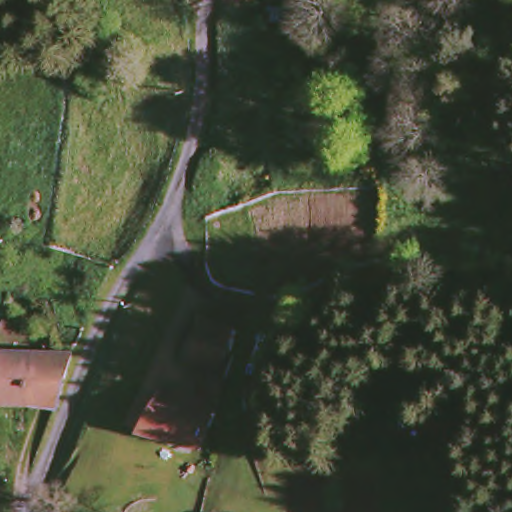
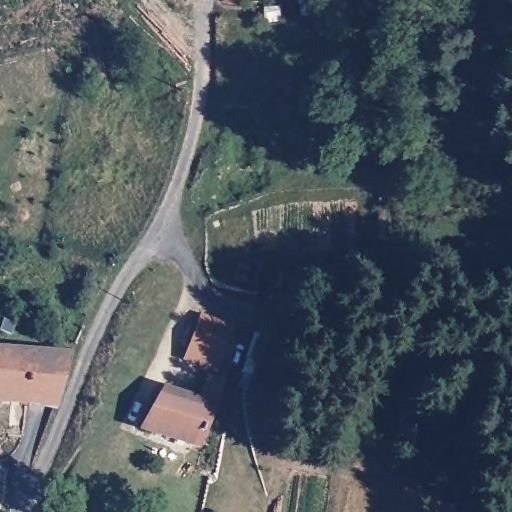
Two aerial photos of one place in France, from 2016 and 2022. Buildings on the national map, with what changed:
unchanged [(223,366),(193,357),(202,317),(233,327),(223,366)]
unchanged [(0,405),(0,349),(69,354),(62,408),(50,408),(0,405)]
unchanged [(150,430),(156,412),(162,389),(203,401),(210,375),(218,377),(222,379),(215,404),(203,447),(150,430)]

